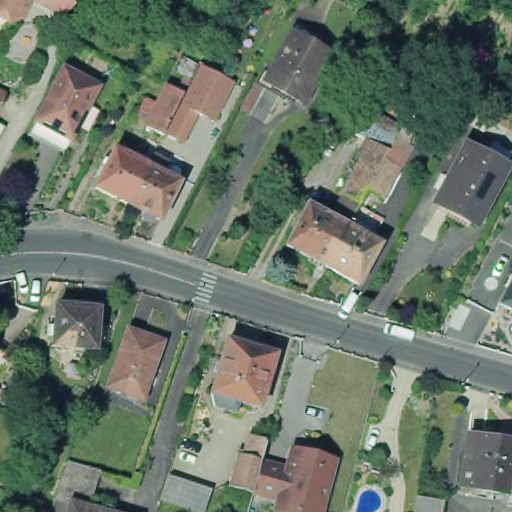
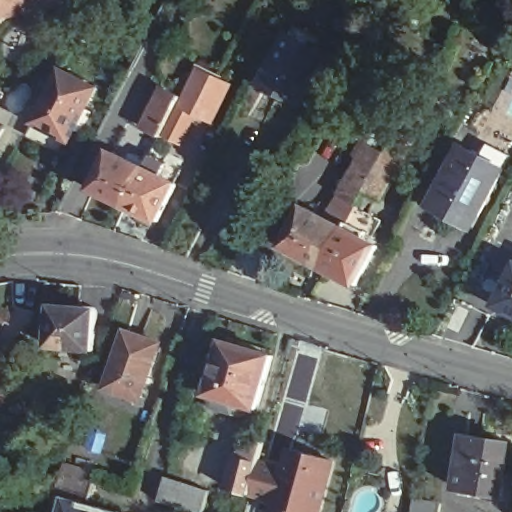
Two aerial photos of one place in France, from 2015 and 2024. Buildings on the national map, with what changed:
unchanged [(322,77),(324,78),(317,91),(315,90),(305,109),(267,87),(295,39),(300,29),(317,40),(312,49),(332,60),(322,77)]
unchanged [(60,62),(105,85),(72,141),(34,121),(60,62)]
unchanged [(161,136),(145,129),(167,85),(183,92),(197,65),(222,76),(218,83),(231,90),(217,116),(195,105),(176,144),(161,136)]
unchanged [(0,108),(0,90),(7,94),(0,108)]
unchanged [(375,143),(370,141),(380,125),(357,114),(357,115),(355,114),(370,90),(415,115),(412,120),(427,129),(394,185),(380,176),(372,190),(354,180),(375,143)]
unchanged [(496,195),(474,236),(432,214),(463,156),(482,166),(489,153),(511,165),(504,178),(495,194),(496,195)]
unchanged [(131,210),(98,195),(108,174),(104,171),(107,164),(112,166),(117,156),(135,165),(138,159),(154,165),(131,210)]
unchanged [(154,165),(167,172),(164,180),(181,188),(162,226),(131,210),(154,165)]
unchanged [(260,212),(247,205),(260,182),(272,189),(260,212)]
unchanged [(325,268),(286,245),(309,206),(348,229),(325,268)]
unchanged [(348,229),(352,222),(370,232),(366,238),(380,245),(357,285),(325,268),(348,229)]
unchanged [(498,308),(512,281),(512,316),(498,308)]
unchanged [(90,356),(90,350),(60,348),(64,308),(83,309),(83,305),(104,306),(106,310),(104,351),(100,350),(100,356),(90,356)]
unchanged [(160,343),(140,400),(107,388),(127,331),(160,343)]
unchanged [(217,403),(215,390),(230,336),(277,350),(262,403),(242,398),(239,410),(217,403)]
unchanged [(0,353),(2,354),(0,360),(0,353)]
unchanged [(502,495),(457,488),(465,436),(510,443),(505,474),(512,475),(512,497),(502,495)]
unchanged [(280,510),(282,500),(256,494),(232,487),(241,452),(248,455),(252,438),(270,442),(267,451),(265,459),(264,463),(290,471),(295,450),(337,461),(324,512),(279,512),(280,510)]
unchanged [(57,505),(70,467),(103,476),(92,512),(55,512),(57,505)]
unchanged [(210,491),(204,512),(194,512),(159,500),(166,477),(210,491)]
unchanged [(440,501),(438,512),(412,512),(415,497),(440,501)]

